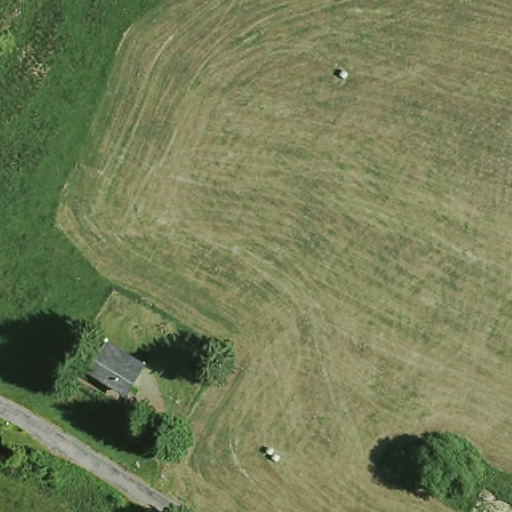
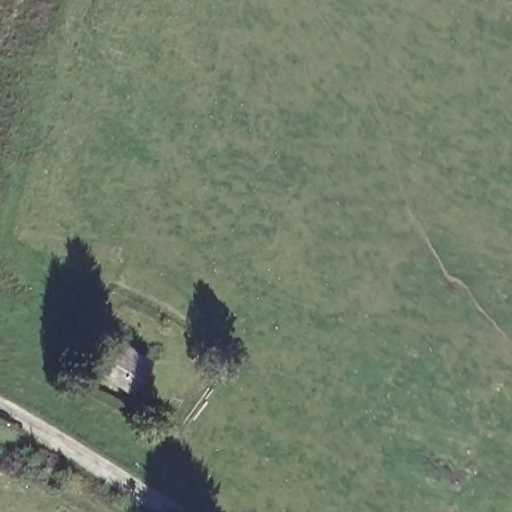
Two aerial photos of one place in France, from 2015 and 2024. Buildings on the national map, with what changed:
unchanged [(102,353),(115,334),(114,333),(115,330),(120,332),(119,334),(137,347),(144,351),(150,342),(152,343),(146,352),(134,373),(102,353)]

